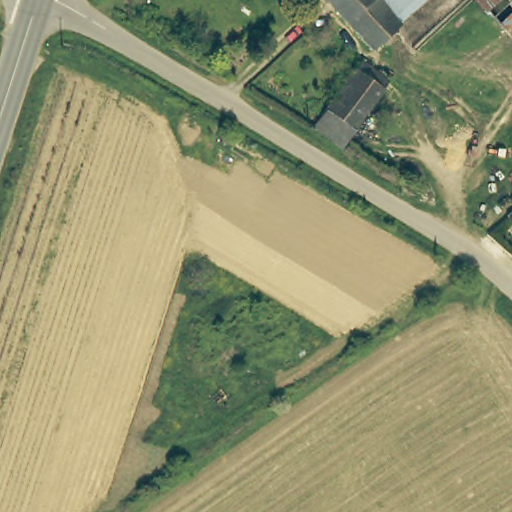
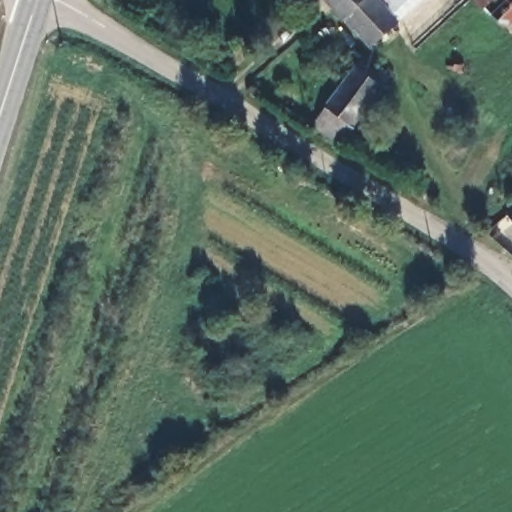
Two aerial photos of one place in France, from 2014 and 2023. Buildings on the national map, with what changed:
unchanged [(421,0),(396,21),(367,46),(330,0),(421,0)]
unchanged [(481,0),(512,0),(512,17),(502,25),(481,0)]
unchanged [(332,50),(344,39),(355,50),(345,62),(332,50)]
unchanged [(350,125),(340,146),(327,139),(316,131),(309,124),(352,68),(365,53),(386,71),(350,125)]
unchanged [(512,214),(512,226),(505,219),(512,214)]

